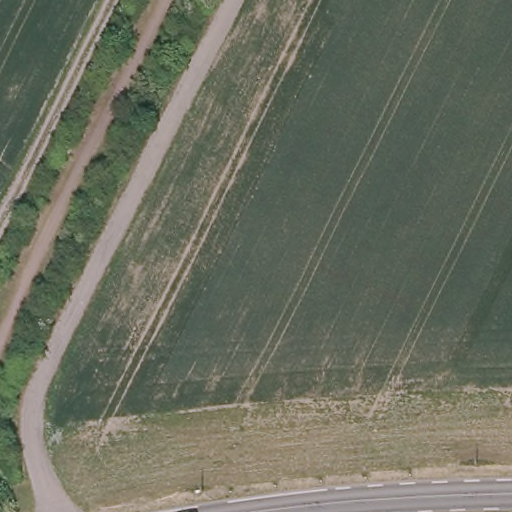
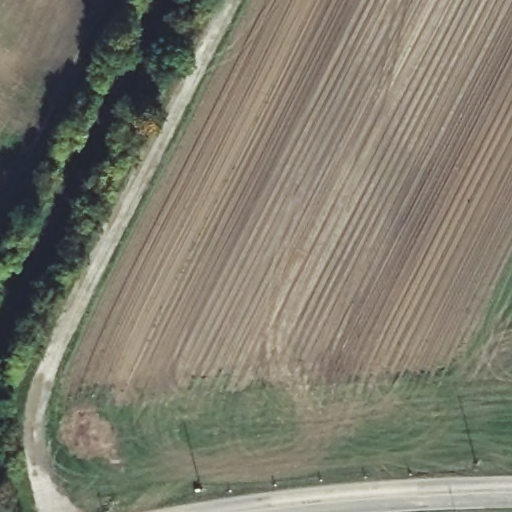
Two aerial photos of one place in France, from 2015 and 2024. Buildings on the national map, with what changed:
[]

